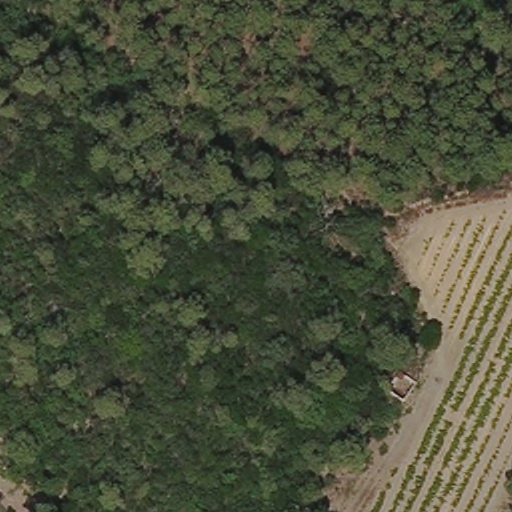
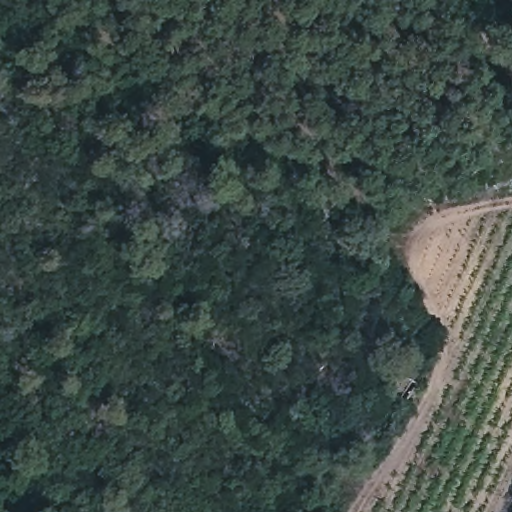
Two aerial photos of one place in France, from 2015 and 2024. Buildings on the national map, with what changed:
unchanged [(399,404),(413,383),(432,396),(420,419),(399,404)]

